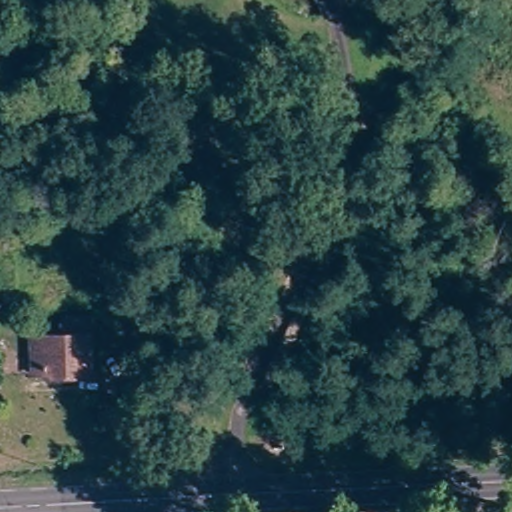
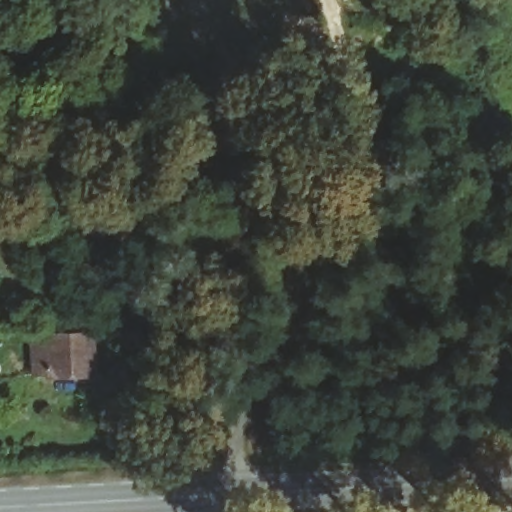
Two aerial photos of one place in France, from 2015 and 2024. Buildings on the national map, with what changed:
unchanged [(46,380),(46,375),(28,376),(26,338),(65,337),(65,321),(91,320),(93,378),(46,380)]

